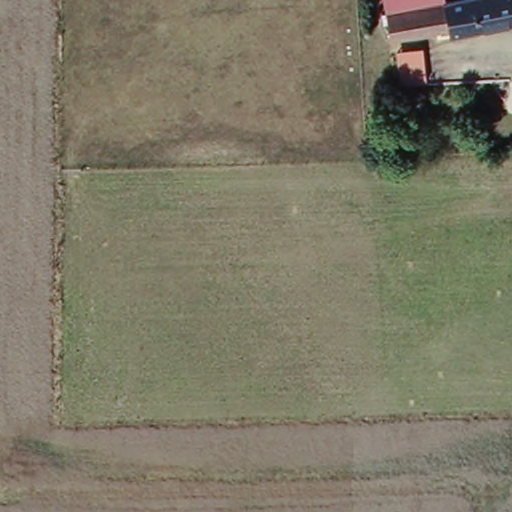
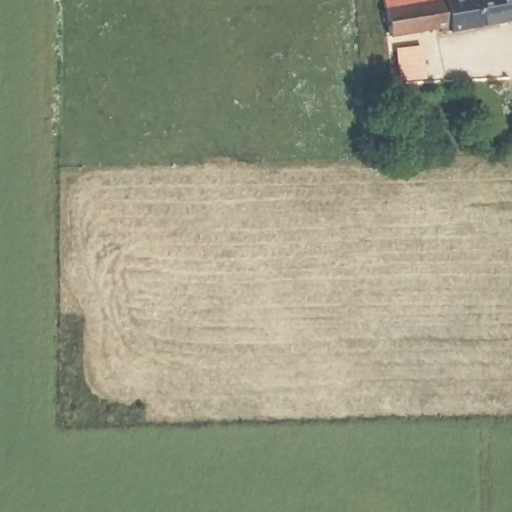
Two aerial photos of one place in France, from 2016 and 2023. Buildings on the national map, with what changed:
unchanged [(437,3),(381,15),(379,0),(437,0),(437,3)]
unchanged [(443,32),(385,44),(381,15),(437,3),(452,0),(512,0),(512,23),(445,38),(443,32)]

